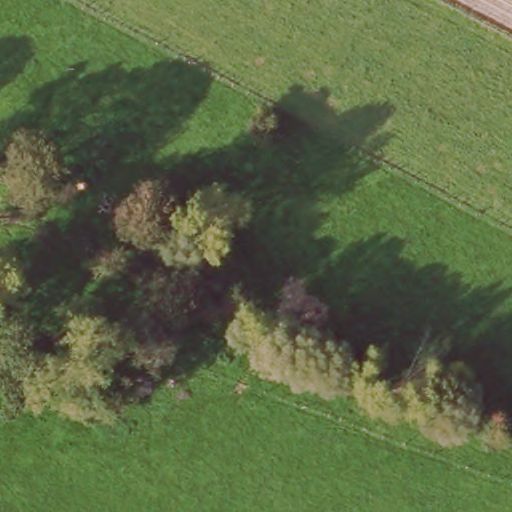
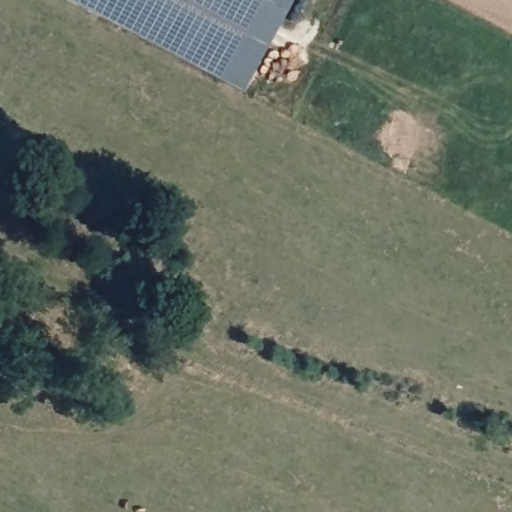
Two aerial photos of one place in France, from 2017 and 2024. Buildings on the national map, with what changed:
new [(240,92),(71,0),(286,0),(280,12),(240,92)]

